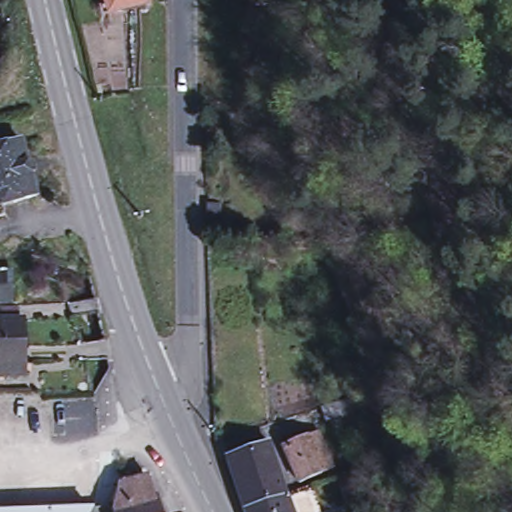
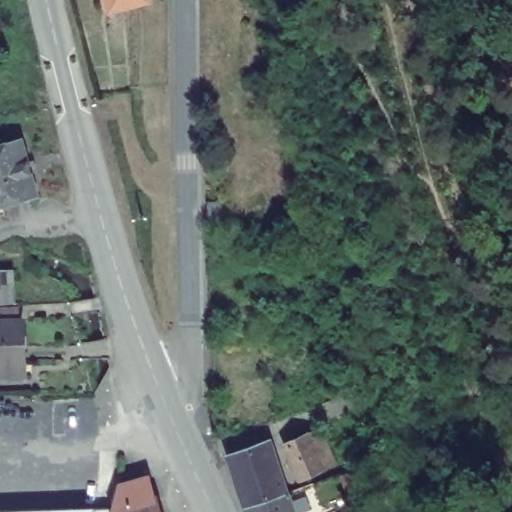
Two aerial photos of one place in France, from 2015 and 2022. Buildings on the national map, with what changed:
unchanged [(117,11),(114,1),(107,3),(106,0),(148,0),(149,3),(117,11)]
unchanged [(37,130),(54,188),(20,197),(2,202),(0,194),(0,141),(37,130)]
unchanged [(2,202),(20,197),(22,207),(0,213),(0,194),(2,202)]
unchanged [(18,268),(20,298),(0,299),(0,268),(18,268)]
unchanged [(3,372),(0,372),(0,305),(21,304),(22,317),(27,317),(29,361),(29,370),(3,372)]
unchanged [(328,412),(349,404),(354,418),(329,426),(325,413),(328,412)]
unchanged [(321,437),(337,474),(301,489),(285,451),(321,437)]
unchanged [(228,461),(270,447),(290,499),(309,493),(316,512),(246,512),(228,461)]
unchanged [(116,503),(123,480),(150,473),(156,494),(158,494),(163,512),(108,512),(111,506),(112,503),(116,503)]
unchanged [(89,504),(85,512),(0,512),(0,510),(89,504)]

